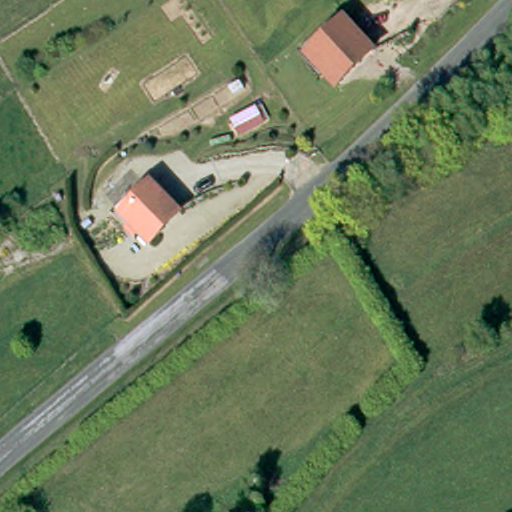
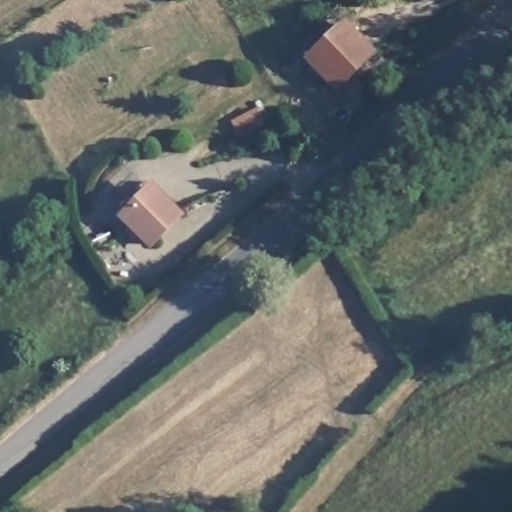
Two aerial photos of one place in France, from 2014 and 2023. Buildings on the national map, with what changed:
unchanged [(379,51),(337,92),(304,61),(345,21),(379,51)]
unchanged [(185,216),(154,254),(120,220),(154,189),(185,216)]
unchanged [(21,261),(2,274),(0,271),(0,259),(12,250),(21,261)]

